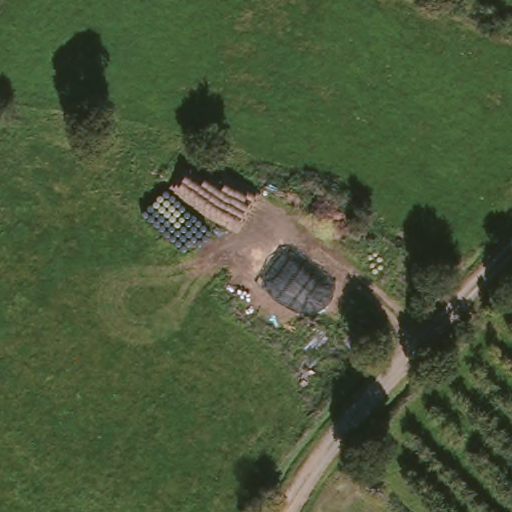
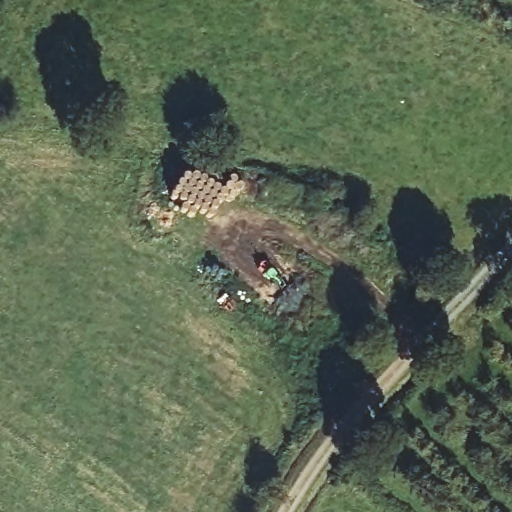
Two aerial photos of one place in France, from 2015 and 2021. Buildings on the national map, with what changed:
[]

